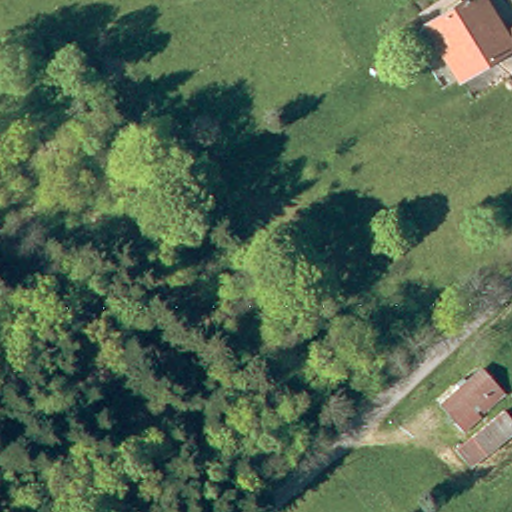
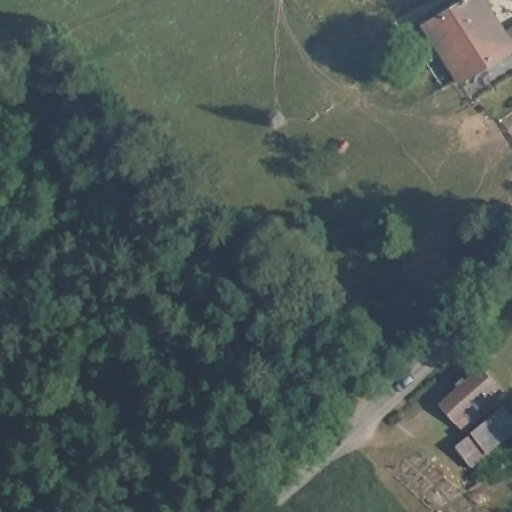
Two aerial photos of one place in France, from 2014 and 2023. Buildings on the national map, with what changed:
unchanged [(432,33),(430,27),(424,16),(454,0),(489,0),(506,35),(512,32),(512,77),(467,99),(460,85),(451,69),(431,77),(413,42),(432,33)]
unchanged [(455,441),(449,432),(436,415),(458,398),(452,391),(461,384),(466,391),(479,382),(499,407),(480,422),(472,413),(461,422),(468,431),(455,441)]
unchanged [(512,425),(512,442),(473,476),(458,456),(504,416),(512,425)]
unchanged [(439,497),(456,482),(469,498),(452,512),(439,497)]

